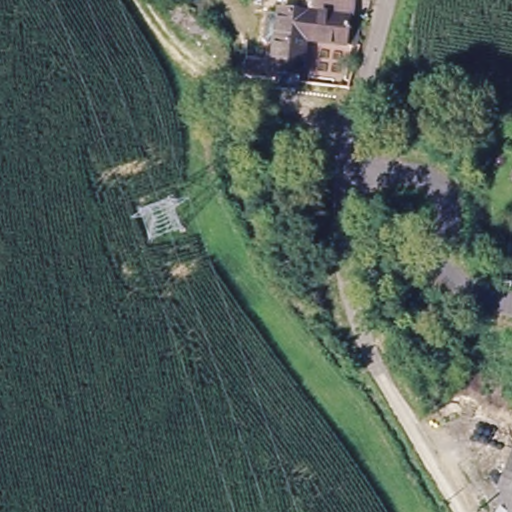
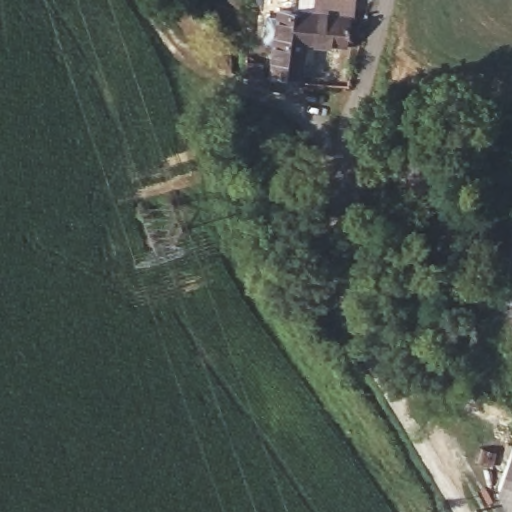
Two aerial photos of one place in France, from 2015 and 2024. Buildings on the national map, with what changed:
unchanged [(309,0),(352,0),(349,19),(308,13),(309,0)]
unchanged [(303,81),(278,77),(280,44),(266,43),(269,13),(283,15),(284,10),(308,13),(349,19),(360,20),(357,49),(308,43),(303,81)]
unchanged [(501,498),(512,454),(512,512),(506,512),(501,498)]

